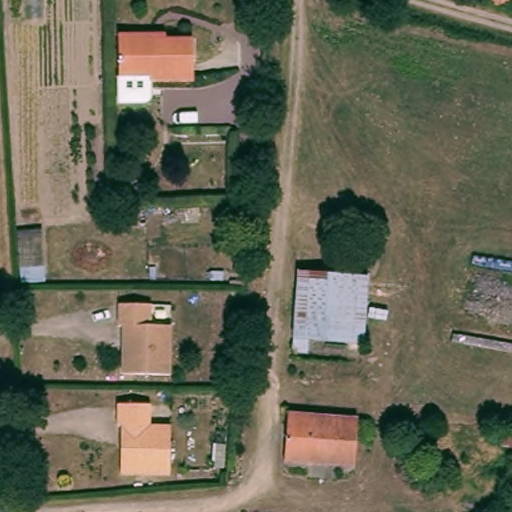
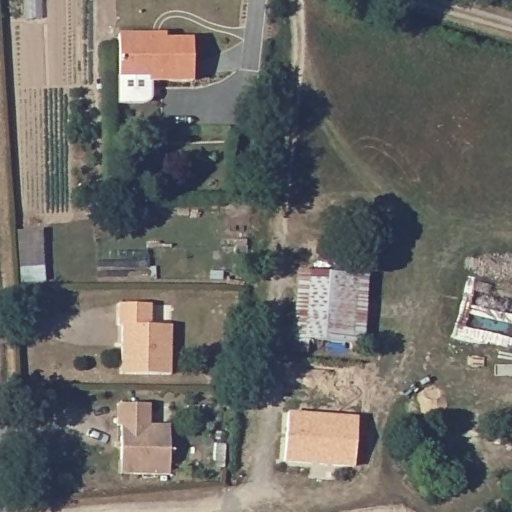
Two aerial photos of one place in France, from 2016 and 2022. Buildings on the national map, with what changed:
unchanged [(119,86),(119,77),(118,35),(153,35),(165,35),(165,40),(193,40),(193,80),(150,80),(150,86),(119,86)]
unchanged [(324,336),(309,335),(308,347),(292,346),(293,333),(298,266),(329,268),(324,336)]
unchanged [(363,338),(324,336),(329,268),(369,272),(363,338)]
unchanged [(176,331),(176,380),(126,379),(127,331),(123,331),(124,309),(156,309),(156,330),(176,331)]
unchanged [(175,426),(175,475),(125,475),(126,426),(122,426),(122,404),(155,404),(155,425),(175,426)]
unchanged [(288,413),(358,418),(354,467),(284,462),(288,413)]

